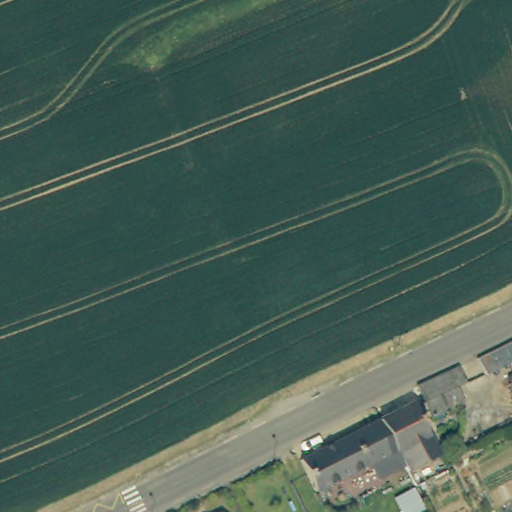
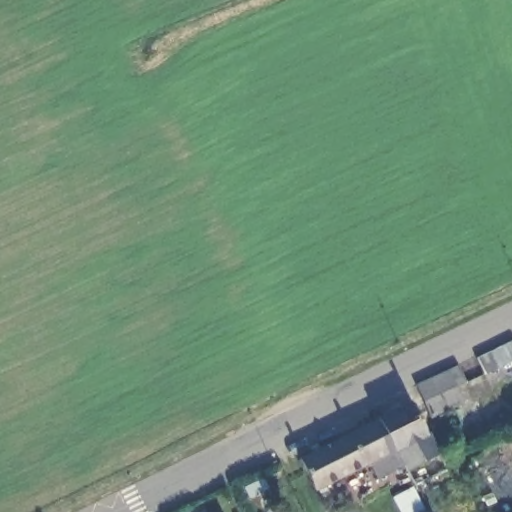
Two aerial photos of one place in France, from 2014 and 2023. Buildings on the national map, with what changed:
unchanged [(453,366),(467,397),(436,413),(420,382),(453,366)]
unchanged [(416,404),(437,448),(441,455),(430,461),(408,472),(404,464),(383,420),(416,404)]
unchanged [(383,420),(404,464),(380,477),(373,464),(320,489),(306,458),(383,420)]
unchanged [(223,508),(225,512),(214,512),(223,508)]

